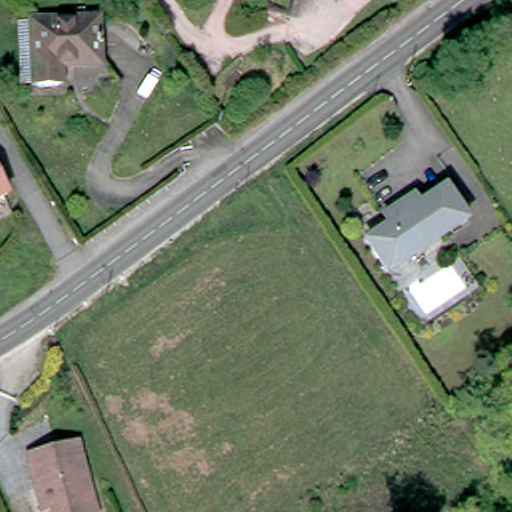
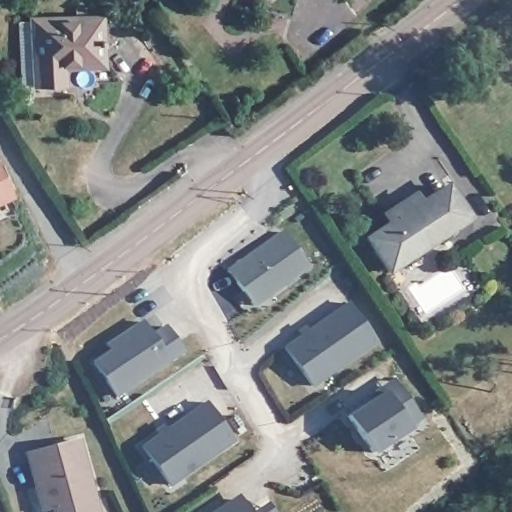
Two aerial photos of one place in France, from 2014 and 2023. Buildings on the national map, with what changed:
unchanged [(263,11),(266,0),(298,0),(292,19),(263,11)]
unchanged [(50,80),(27,81),(25,37),(20,37),(20,30),(25,30),(25,16),(65,15),(65,4),(75,4),(75,15),(87,15),(95,14),(96,57),(89,57),(50,59),(50,80)]
unchanged [(0,191),(0,178),(5,189),(0,191)]
unchanged [(385,212),(416,193),(421,201),(448,185),(467,219),(445,232),(437,230),(410,248),(407,256),(386,268),(366,236),(390,221),(385,212)]
new [(308,266),(251,306),(226,269),(281,229),(308,266)]
new [(376,343),(311,386),(282,346),(345,301),(376,343)]
new [(151,331),(165,323),(183,351),(114,396),(91,361),(107,350),(103,343),(141,319),(151,331)]
new [(391,376),(417,421),(408,429),(370,455),(344,416),(370,400),(364,394),(391,376)]
new [(233,441),(167,487),(140,446),(205,400),(233,441)]
unchanged [(36,483),(27,450),(77,435),(98,509),(87,512),(55,512),(52,502),(42,505),(36,483)]
new [(251,512),(209,512),(237,492),(251,512)]

